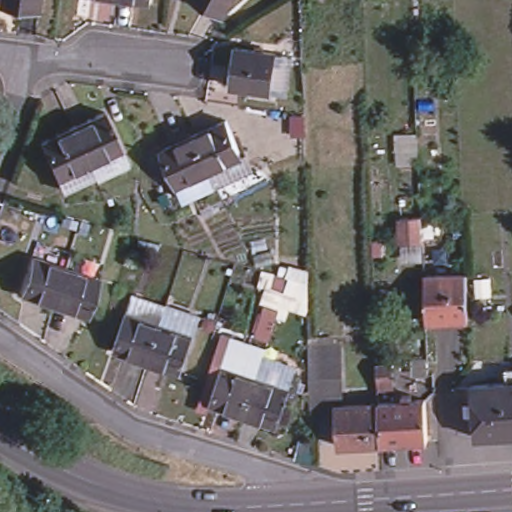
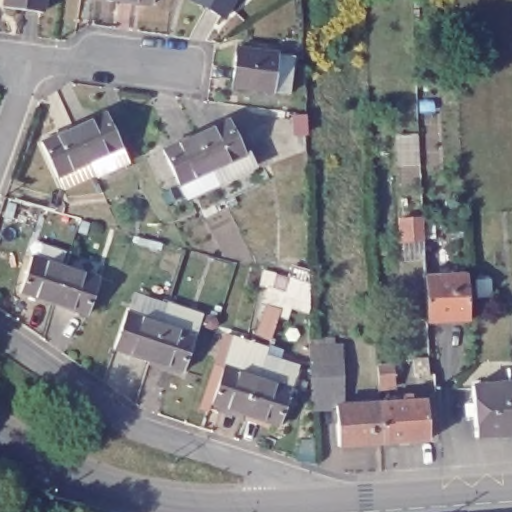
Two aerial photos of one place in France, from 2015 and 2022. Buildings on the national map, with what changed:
unchanged [(2,7),(3,0),(42,0),(40,14),(2,7)]
unchanged [(109,0),(116,0),(115,1),(109,0)]
unchanged [(115,1),(116,0),(152,0),(150,7),(115,1)]
unchanged [(200,7),(203,0),(247,0),(233,25),(200,7)]
unchanged [(275,57),(270,95),(231,89),(236,51),(275,57)]
unchanged [(103,114),(120,148),(87,163),(72,129),(103,114)]
unchanged [(230,127),(247,164),(215,178),(198,142),(230,127)]
unchanged [(72,129),(87,163),(55,177),(40,142),(72,129)]
unchanged [(198,142),(215,178),(182,192),(167,157),(198,142)]
unchanged [(52,298),(18,287),(30,251),(63,262),(52,298)]
unchanged [(97,273),(86,309),(52,298),(63,262),(97,273)]
unchanged [(291,306),(287,318),(280,317),(273,335),(258,328),(275,269),(285,262),(314,270),(309,310),(291,306)]
unchanged [(423,278),(425,278),(465,276),(466,276),(470,322),(467,322),(427,325),(423,278)]
unchanged [(147,363),(113,352),(125,316),(159,326),(147,363)]
unchanged [(181,373),(147,363),(159,326),(192,337),(181,373)]
unchanged [(338,348),(340,392),(311,395),(310,349),(338,348)]
unchanged [(395,377),(378,377),(377,371),(377,358),(395,357),(395,377)]
unchanged [(220,369),(254,380),(242,417),(208,407),(220,369)]
unchanged [(254,380),(288,391),(277,428),(242,417),(254,380)]
unchanged [(512,380),(512,429),(499,430),(497,382),(512,380)]
unchanged [(475,432),(471,383),(497,382),(499,430),(475,432)]
unchanged [(426,402),(427,440),(383,443),(381,403),(426,402)]
unchanged [(379,403),(381,403),(383,443),(338,446),(336,407),(379,403)]

